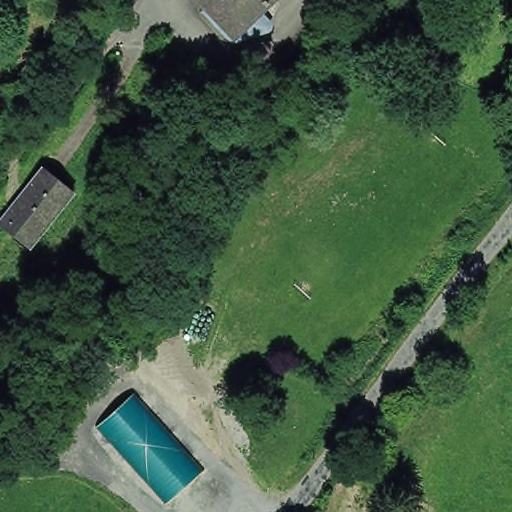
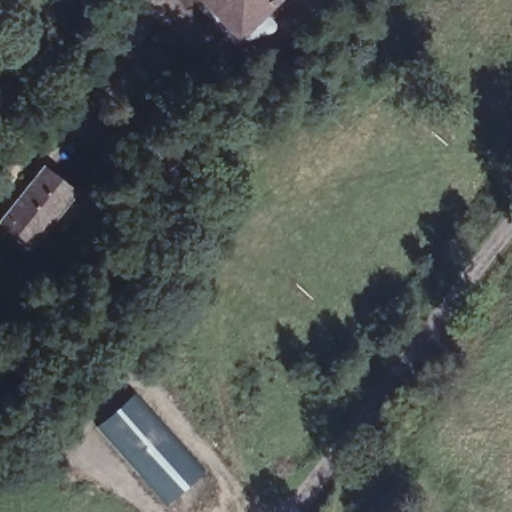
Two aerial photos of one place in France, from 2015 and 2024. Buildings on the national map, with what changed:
unchanged [(265,1),(280,15),(281,16),(276,23),(241,33),(211,1),(212,0),(266,0),(265,1)]
unchanged [(76,194),(25,244),(0,222),(0,206),(41,162),(76,194)]
unchanged [(202,471),(167,503),(97,425),(133,393),(202,471)]

